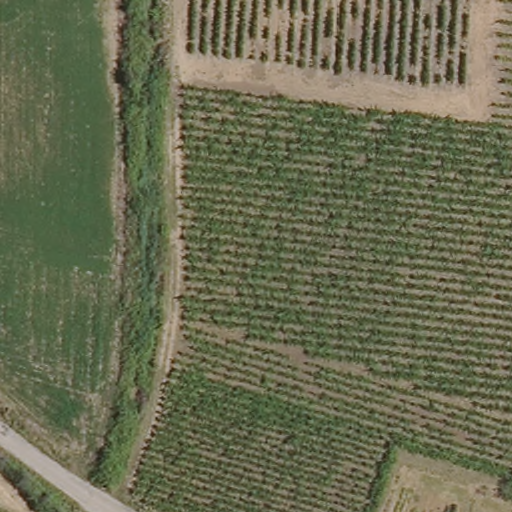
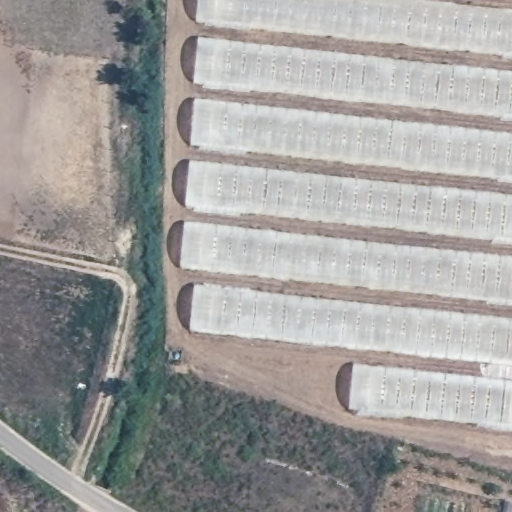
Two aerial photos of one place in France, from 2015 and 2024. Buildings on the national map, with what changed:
new [(354,347),(190,329),(197,269),(179,267),(194,0),(512,0),(512,427),(348,409),(354,347)]

